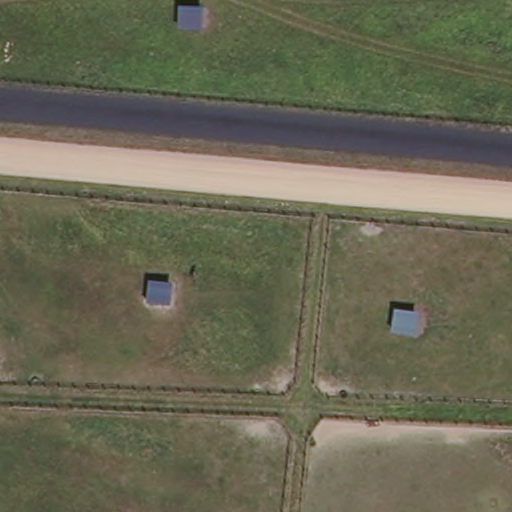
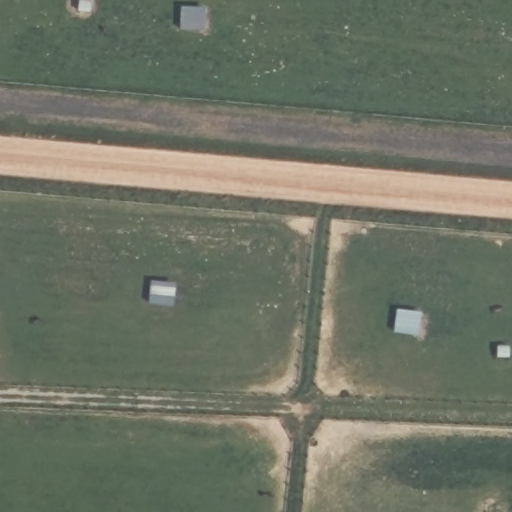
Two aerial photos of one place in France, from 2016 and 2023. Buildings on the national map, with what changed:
unchanged [(179,5),(203,6),(203,30),(178,29),(179,5)]
unchanged [(145,303),(146,279),(173,280),(172,304),(145,303)]
unchanged [(391,331),(394,308),(422,311),(419,334),(391,331)]

